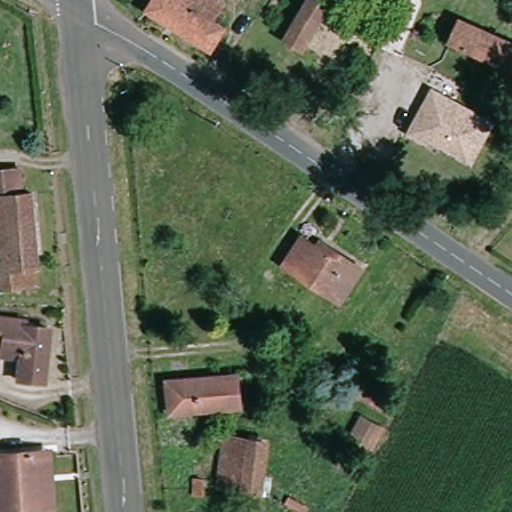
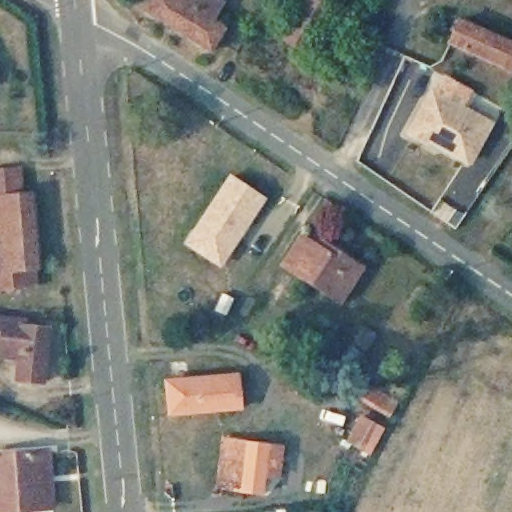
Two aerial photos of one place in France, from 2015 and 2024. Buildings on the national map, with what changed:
unchanged [(225,29),(210,53),(145,11),(151,0),(219,0),(223,2),(213,20),(225,29)]
unchanged [(284,39),(307,0),(317,0),(328,6),(302,50),(284,39)]
unchanged [(512,44),(512,72),(450,44),(460,20),(512,44)]
unchanged [(425,137),(423,142),(409,134),(423,107),(431,92),(490,124),(470,161),(425,137)]
unchanged [(38,268),(35,268),(36,285),(0,288),(0,171),(19,169),(21,195),(31,194),(38,268)]
new [(183,244),(228,175),(266,199),(219,268),(183,244)]
unchanged [(340,302),(284,265),(302,237),(326,252),(329,247),(362,268),(340,302)]
unchanged [(43,382),(17,380),(19,358),(0,357),(0,352),(1,346),(0,346),(0,318),(23,321),(23,327),(48,330),(43,382)]
unchanged [(167,382),(227,376),(238,375),(241,407),(231,408),(170,415),(167,382)]
unchanged [(395,402),(388,415),(351,393),(358,381),(395,402)]
unchanged [(368,452),(348,441),(362,417),(382,428),(368,452)]
unchanged [(220,467),(224,437),(268,442),(262,493),(241,491),(217,487),(220,467)]
unchanged [(40,451),(49,450),(53,508),(44,509),(5,512),(0,512),(0,454),(40,451)]

